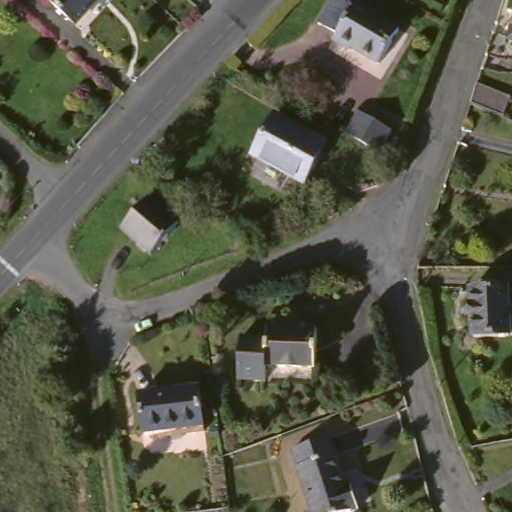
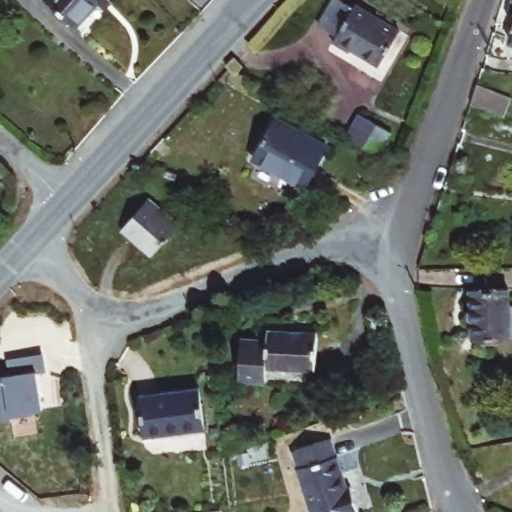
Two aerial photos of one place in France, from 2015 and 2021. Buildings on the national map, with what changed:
unchanged [(100,4),(76,26),(48,0),(114,0),(106,9),(100,4)]
unchanged [(346,0),(356,0),(403,30),(381,68),(328,36),(346,0)]
unchanged [(512,33),(512,40),(510,40),(512,33)]
unchanged [(503,77),(495,102),(464,90),(471,68),(503,77)]
unchanged [(363,104),(397,120),(383,147),(349,133),(363,104)]
unchanged [(273,116),(329,142),(313,180),(256,153),(273,116)]
unchanged [(182,220),(157,252),(126,229),(143,210),(153,197),(175,213),(182,220)]
unchanged [(504,308),(512,308),(512,338),(471,339),(470,286),(503,286),(504,308)]
unchanged [(240,340),(269,341),(268,330),(315,331),(315,372),(268,371),(268,385),(240,385),(240,340)]
new [(0,421),(0,380),(15,379),(14,361),(46,360),(47,378),(40,378),(41,414),(31,414),(32,418),(9,420),(0,421)]
unchanged [(145,391),(204,390),(204,428),(146,432),(145,391)]
unchanged [(300,444),(340,440),(345,483),(358,482),(362,512),(309,512),(300,444)]

